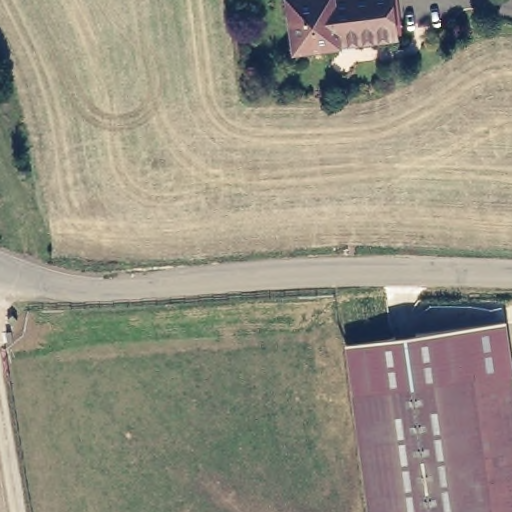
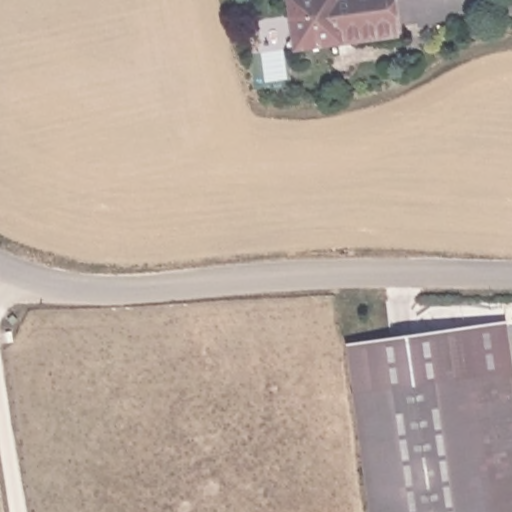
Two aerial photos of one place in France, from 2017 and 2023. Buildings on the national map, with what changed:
unchanged [(401,37),(300,52),(294,0),(396,0),(400,25),(401,37)]
unchanged [(473,377),(355,392),(347,344),(506,322),(512,365),(512,512),(492,512),(486,465),(473,377)]
unchanged [(473,377),(492,512),(371,512),(355,392),(473,377)]

